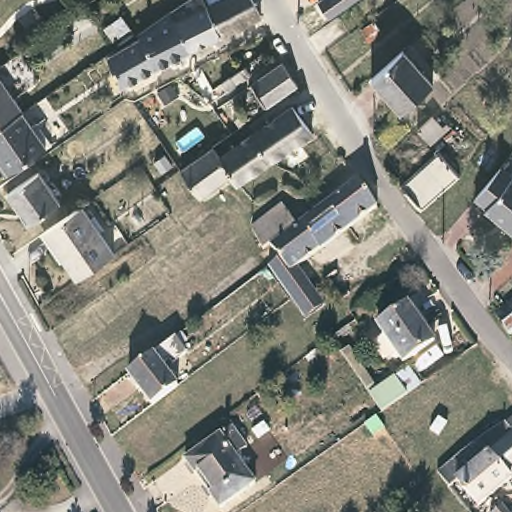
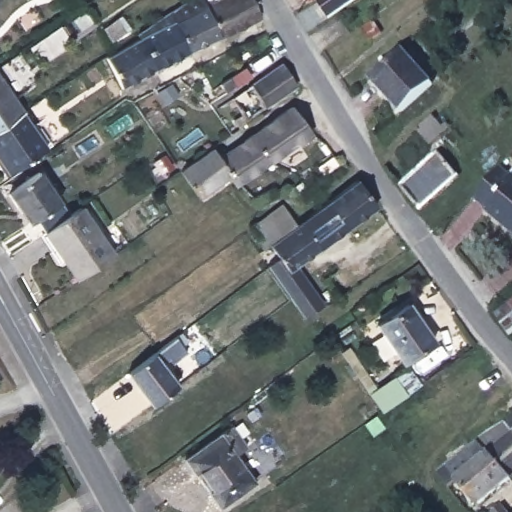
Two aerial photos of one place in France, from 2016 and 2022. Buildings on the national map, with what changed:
unchanged [(201,0),(220,40),(191,55),(172,10),(187,0),(201,0)]
unchanged [(220,40),(201,0),(251,0),(261,17),(220,40)]
unchanged [(317,5),(322,0),(360,0),(330,23),(317,5)]
unchanged [(378,17),(365,28),(357,19),(371,7),(378,17)]
unchanged [(152,74),(137,45),(132,38),(172,10),(191,55),(152,74)]
unchanged [(122,90),(106,60),(137,45),(152,74),(122,90)]
unchanged [(429,80),(398,110),(366,77),(390,56),(399,49),(429,80)]
unchanged [(285,63),(297,85),(285,94),(265,109),(250,87),(270,74),(285,63)]
unchanged [(247,82),(227,95),(221,87),(236,76),(241,74),(247,82)]
unchanged [(0,82),(21,110),(17,112),(0,124),(0,82)]
unchanged [(248,131),(268,117),(290,101),(311,130),(293,141),(289,145),(270,159),(237,182),(230,171),(217,154),(248,131)]
unchanged [(439,121),(443,117),(449,123),(432,142),(416,126),(429,111),(439,121)]
unchanged [(25,125),(32,120),(47,142),(5,172),(0,166),(0,124),(17,112),(25,125)]
unchanged [(230,171),(200,195),(180,167),(211,145),(217,154),(230,171)]
unchanged [(511,179),(512,177),(512,235),(484,211),(486,209),(475,200),(500,170),(511,179)]
unchanged [(9,194),(40,172),(59,201),(62,205),(30,226),(27,222),(9,194)]
unchanged [(323,205),(353,182),(372,209),(345,232),(323,205)]
unchanged [(242,231),(239,228),(255,216),(271,205),(288,227),(272,240),(257,250),(242,231)]
unchanged [(293,228),(323,205),(345,232),(314,256),(293,228)]
unchanged [(115,252),(79,279),(47,231),(83,207),(115,252)]
unchanged [(323,310),(303,323),(295,310),(288,302),(274,282),(265,270),(264,267),(276,258),(267,247),(275,242),(293,228),(314,256),(296,271),(314,296),(322,308),(323,310)]
unchanged [(512,333),(497,314),(501,310),(512,301),(512,333)]
unchanged [(377,325),(398,309),(407,302),(435,339),(426,345),(405,361),(377,325)]
unchanged [(150,410),(134,387),(126,375),(182,335),(187,342),(182,346),(185,350),(187,353),(170,366),(168,363),(165,358),(159,363),(162,367),(177,390),(150,410)]
unchanged [(375,387),(393,375),(407,367),(419,382),(407,391),(382,410),(368,392),(340,350),(347,345),(375,387)]
unchanged [(507,417),(512,413),(512,423),(507,417)]
unchanged [(460,481),(460,480),(454,483),(441,466),(447,462),(470,445),(478,438),(507,417),(512,423),(512,477),(481,505),(460,481)]
unchanged [(247,447),(236,455),(257,484),(222,510),(185,458),(230,425),(247,447)]
unchanged [(504,505),(509,512),(495,512),(504,505)]

